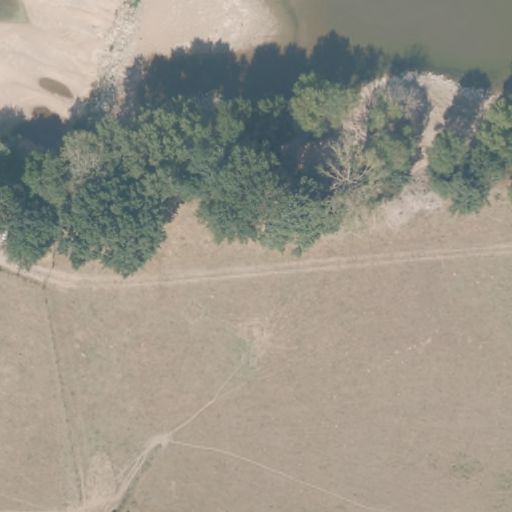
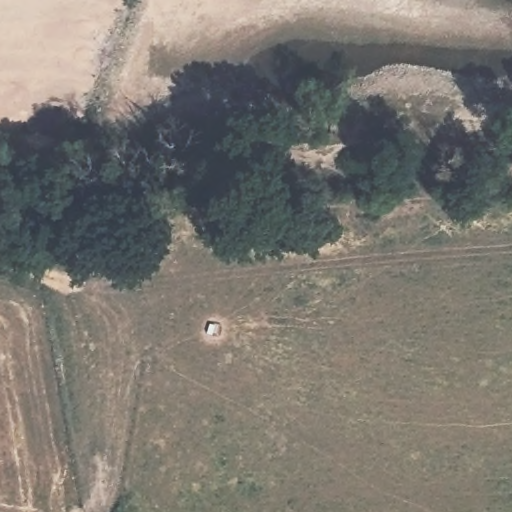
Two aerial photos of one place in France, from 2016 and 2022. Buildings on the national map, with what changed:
[]

